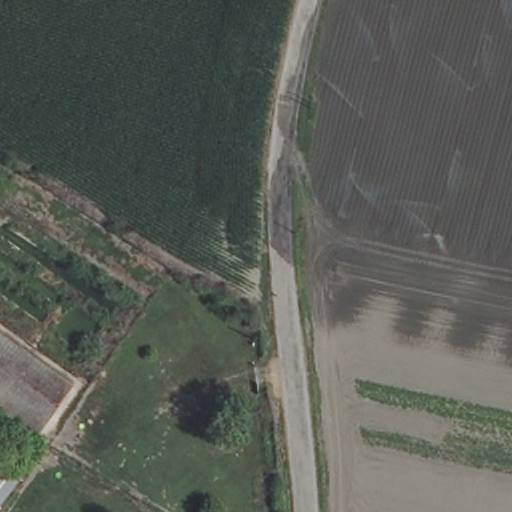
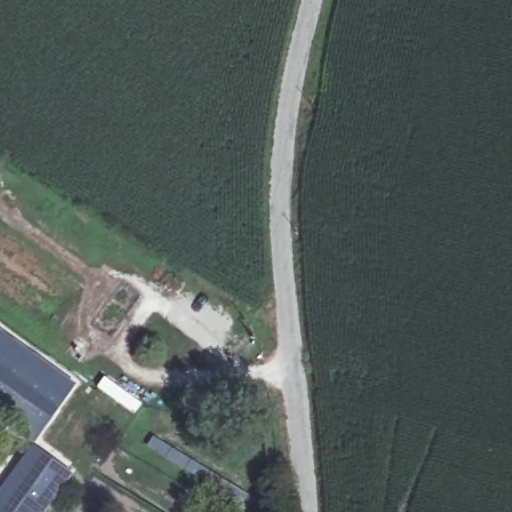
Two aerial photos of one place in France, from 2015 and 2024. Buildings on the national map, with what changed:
unchanged [(0,414),(0,338),(73,390),(38,441),(0,414)]
new [(70,474),(64,482),(36,463),(1,512),(0,512),(0,502),(38,450),(70,474)]
new [(65,483),(44,512),(1,512),(36,463),(64,482),(65,483)]

